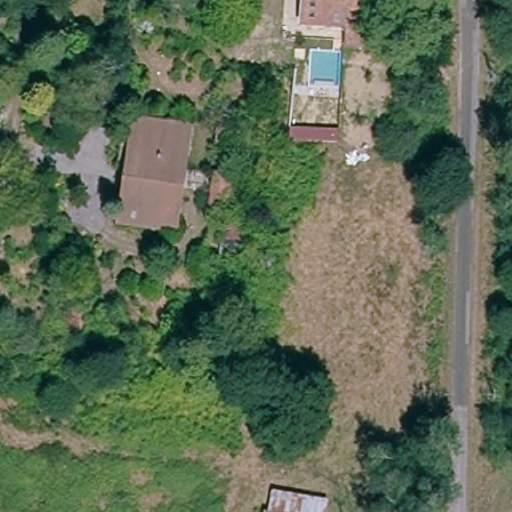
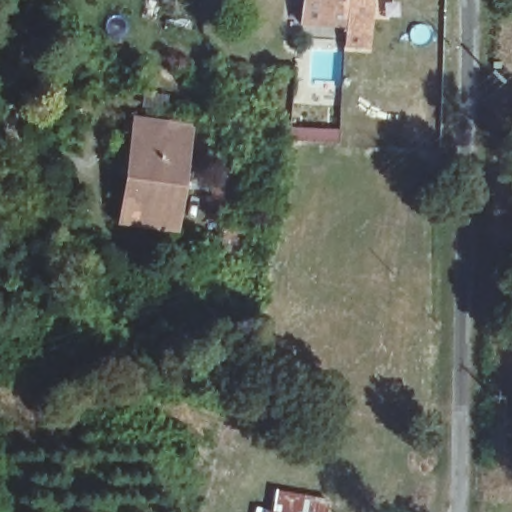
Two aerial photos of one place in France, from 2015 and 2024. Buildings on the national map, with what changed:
unchanged [(304,0),(333,0),(333,2),(347,4),(345,22),(345,25),(302,21),(304,0)]
unchanged [(345,22),(347,4),(333,2),(333,0),(373,0),(371,35),(370,46),(344,45),(345,29),(345,25),(345,22)]
unchanged [(136,120),(143,121),(167,126),(188,129),(187,134),(171,230),(128,222),(119,221),(127,178),(136,120)]
unchanged [(238,171),(231,217),(205,214),(211,169),(238,171)]

